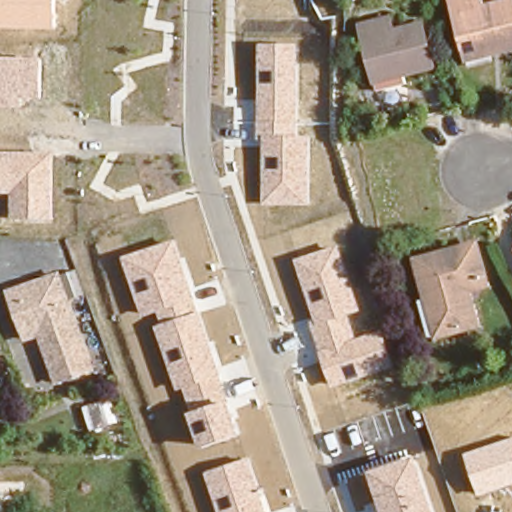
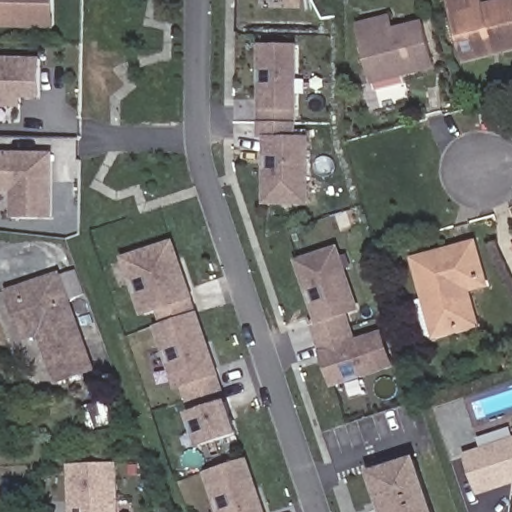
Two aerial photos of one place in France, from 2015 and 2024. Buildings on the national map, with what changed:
unchanged [(0,28),(0,0),(56,0),(55,29),(0,28)]
unchanged [(461,57),(447,0),(482,0),(483,3),(495,0),(512,0),(512,43),(461,57)]
unchanged [(365,75),(352,26),(383,18),(387,30),(400,25),(412,69),(395,74),(366,82),(365,75)]
unchanged [(295,123),(296,137),(310,137),(307,205),(261,204),(261,140),(256,140),(256,122),(256,110),(258,45),(297,45),(295,110),(295,123)]
unchanged [(22,107),(0,107),(0,57),(44,58),(42,99),(23,99),(22,107)]
unchanged [(12,219),(12,193),(0,193),(0,152),(55,153),(55,220),(12,219)]
unchanged [(462,285),(468,321),(431,328),(425,289),(432,288),(425,249),(476,240),(483,281),(462,285)]
unchanged [(241,435),(201,447),(190,414),(194,412),(183,388),(177,390),(156,326),(162,324),(158,312),(144,316),(124,257),(175,241),(195,300),(199,311),(220,375),(230,401),(241,435)]
unchanged [(348,314),(355,338),(380,330),(392,367),(331,388),(319,351),(310,321),(315,319),(295,259),(338,244),(360,311),(348,314)]
unchanged [(57,375),(42,331),(30,335),(14,285),(61,267),(94,361),(57,375)]
unchanged [(90,432),(81,404),(111,396),(120,423),(90,432)]
unchanged [(465,454),(512,438),(512,485),(480,495),(465,454)]
unchanged [(382,512),(368,472),(415,457),(434,512),(382,512)]
unchanged [(249,458),(266,512),(218,512),(205,473),(249,458)]
new [(70,512),(69,464),(119,463),(120,512),(70,512)]

